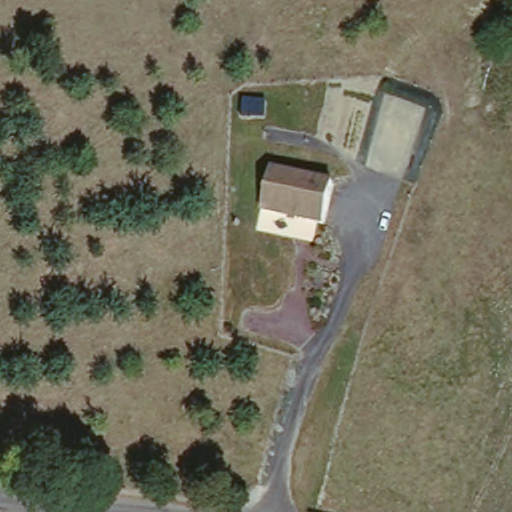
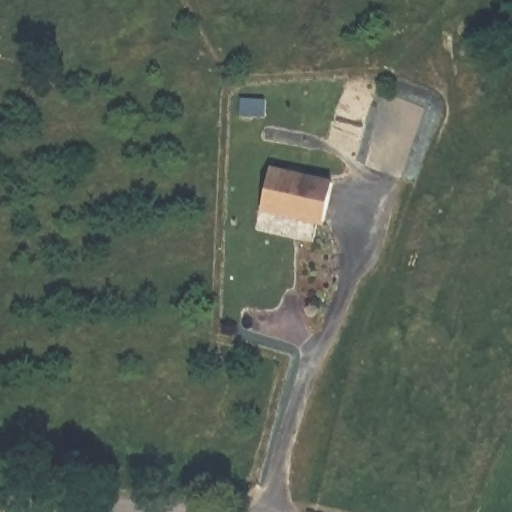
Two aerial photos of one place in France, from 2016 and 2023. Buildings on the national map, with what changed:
unchanged [(322,227),(261,212),(270,167),(333,181),(322,227)]

